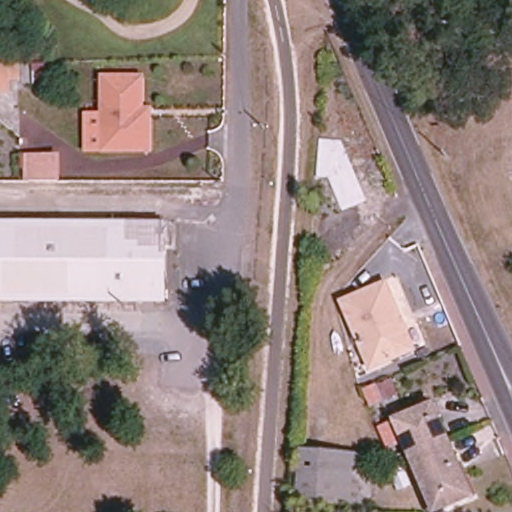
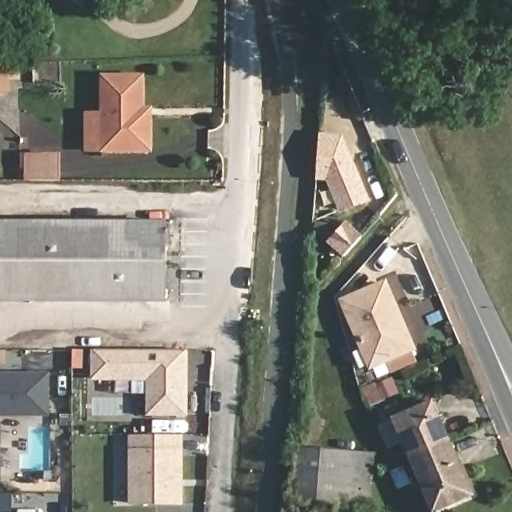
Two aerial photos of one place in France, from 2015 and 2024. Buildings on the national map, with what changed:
unchanged [(11,65),(11,92),(0,92),(0,66),(11,65)]
unchanged [(86,111),(106,110),(106,74),(143,74),(143,116),(154,117),(153,146),(106,146),(87,147),(86,111)]
new [(319,132),(343,134),(371,201),(339,213),(326,180),(317,180),(319,132)]
unchanged [(29,153),(59,154),(58,177),(30,177),(29,153)]
demolished [(344,247),(324,249),(318,189),(338,187),(344,247)]
unchanged [(169,225),(167,305),(0,304),(0,224),(169,225)]
unchanged [(354,334),(359,332),(361,331),(351,309),(346,298),(388,281),(393,293),(416,346),(375,362),(366,340),(363,341),(358,342),(354,334)]
new [(190,349),(191,417),(147,416),(148,382),(93,381),(93,348),(190,349)]
new [(51,372),(51,416),(0,416),(0,371),(51,372)]
unchanged [(428,407),(435,404),(441,418),(451,440),(412,456),(396,422),(428,407)]
new [(3,425),(4,482),(0,482),(0,425),(3,425)]
new [(185,436),(185,504),(133,504),(131,435),(185,436)]
unchanged [(444,512),(436,512),(412,456),(451,440),(462,465),(477,497),(469,500),(444,512)]
unchanged [(359,481),(369,485),(366,508),(295,500),(301,448),(360,452),(359,481)]
new [(13,494),(13,511),(0,511),(0,494),(13,494)]

